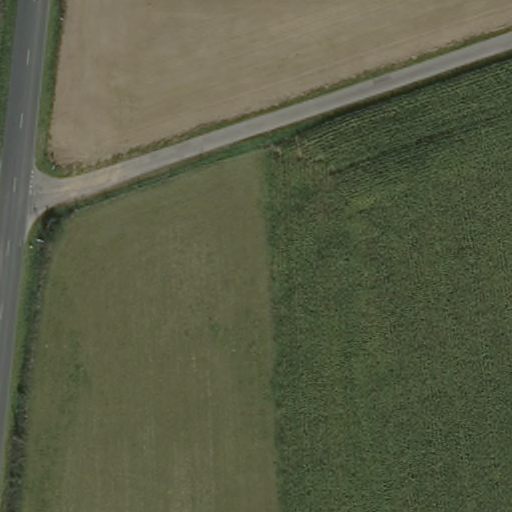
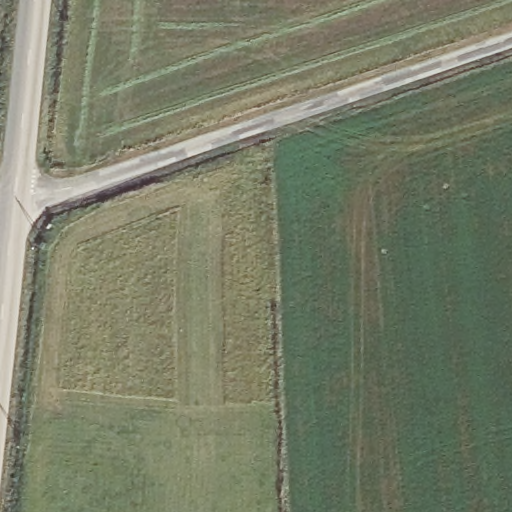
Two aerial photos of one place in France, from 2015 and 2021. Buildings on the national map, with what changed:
[]

